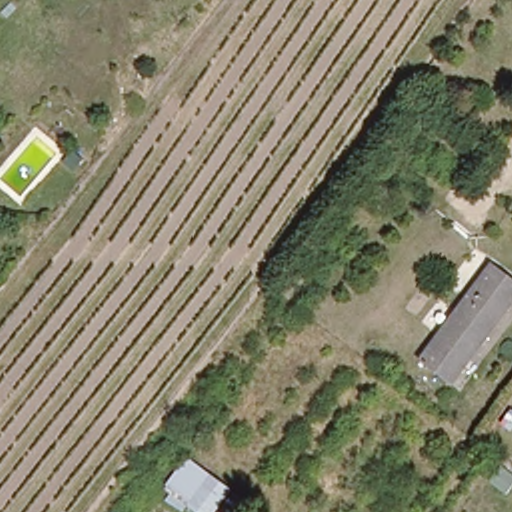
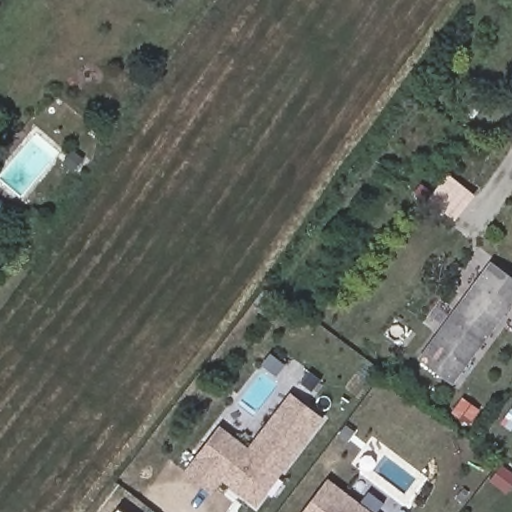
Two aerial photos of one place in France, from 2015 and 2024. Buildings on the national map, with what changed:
unchanged [(512,274),(512,300),(452,381),(421,358),(494,261),(512,274)]
new [(220,478),(210,492),(184,473),(219,428),(247,450),(263,430),(290,395),(320,419),(254,504),(240,493),(232,487),(220,478)]
demolished [(254,512),(149,512),(164,492),(188,456),(257,507),(254,512)]
new [(490,484),(502,469),(512,478),(512,486),(504,495),(490,484)]
new [(365,512),(303,512),(327,482),(365,512)]

